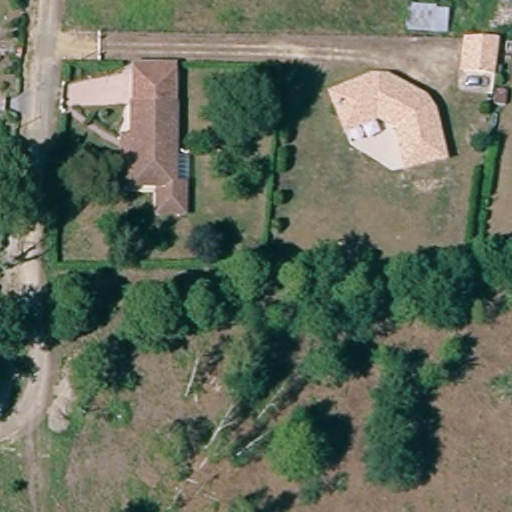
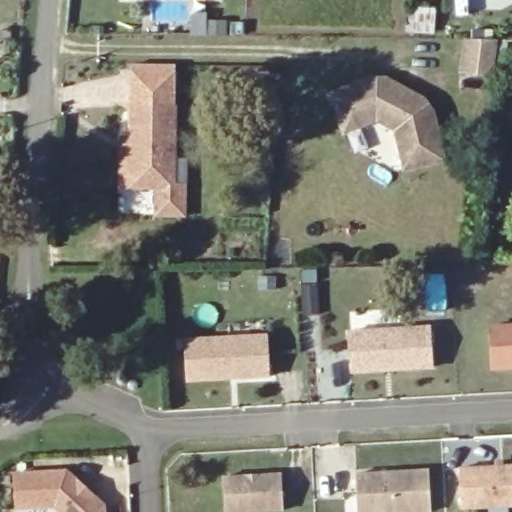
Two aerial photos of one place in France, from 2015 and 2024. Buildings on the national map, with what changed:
new [(148,1),(129,0),(148,0),(148,1)]
unchanged [(498,40),(494,76),(462,72),(466,39),(498,40)]
unchanged [(185,215),(159,215),(159,187),(132,187),(122,187),(124,140),(133,140),(134,73),(135,66),(175,66),(175,74),(175,108),(174,187),(185,187),(185,215)]
unchanged [(370,80),(388,81),(425,101),(433,115),(444,161),(406,170),(397,131),(377,119),(345,132),(342,126),(330,96),(370,80)]
new [(489,324),(512,323),(512,369),(491,370),(489,324)]
new [(431,325),(434,368),(351,374),(348,330),(431,325)]
new [(184,338),(267,334),(270,378),(186,383),(184,338)]
demolished [(157,386),(128,393),(120,370),(150,361),(157,386)]
demolished [(217,417),(193,421),(187,391),(212,385),(217,417)]
demolished [(101,481),(76,481),(76,451),(102,450),(101,481)]
new [(512,465),(512,507),(461,511),(460,467),(512,465)]
new [(107,512),(59,512),(55,507),(15,510),(13,472),(68,469),(106,505),(107,512)]
new [(428,470),(431,512),(357,512),(355,474),(428,470)]
new [(281,473),(283,512),(225,512),(224,476),(281,473)]

